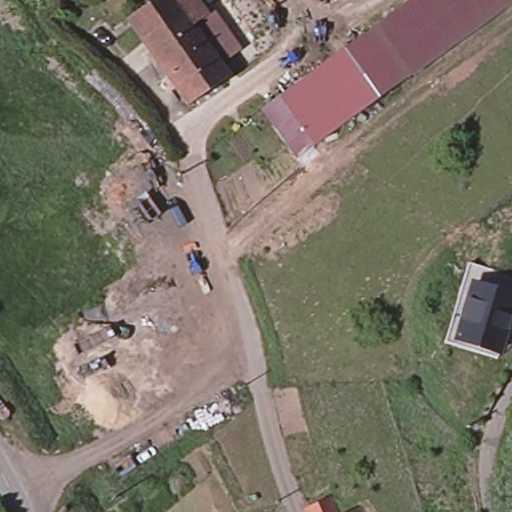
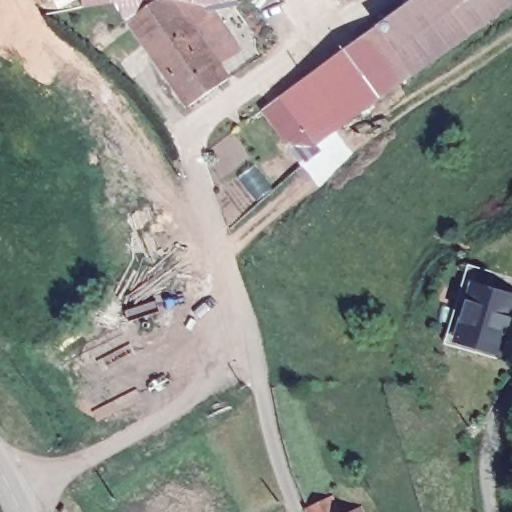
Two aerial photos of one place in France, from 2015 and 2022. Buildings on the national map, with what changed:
unchanged [(217,64),(193,26),(150,55),(140,38),(125,16),(149,0),(176,0),(176,1),(179,0),(198,0),(205,11),(208,8),(236,51),(217,64)]
unchanged [(409,71),(404,65),(375,21),(406,0),(512,0),(512,3),(443,49),(409,71)]
unchanged [(404,65),(409,71),(342,116),(310,138),(275,88),(375,21),(404,65)]
unchanged [(193,26),(217,64),(226,78),(182,105),(150,55),(193,26)]
unchanged [(512,296),(512,332),(505,354),(460,341),(463,330),(456,328),(463,304),(470,306),(476,285),(512,296)]
unchanged [(307,508),(310,506),(330,497),(338,512),(310,512),(307,508)]
unchanged [(361,512),(350,512),(358,508),(361,512)]

